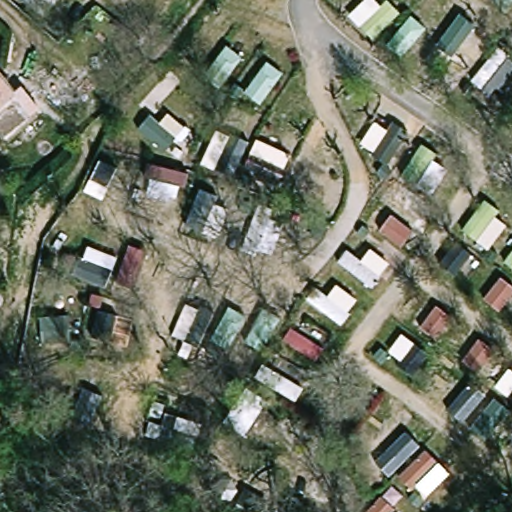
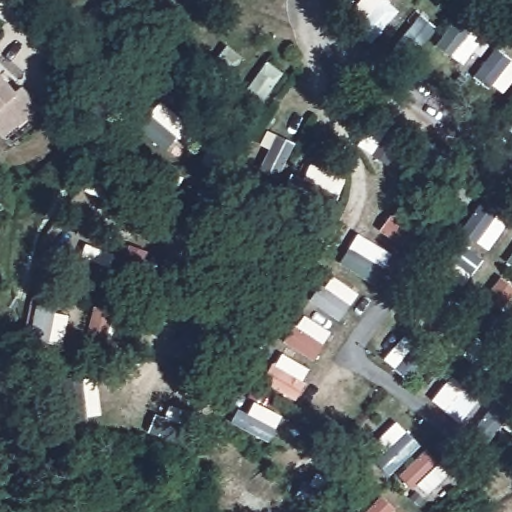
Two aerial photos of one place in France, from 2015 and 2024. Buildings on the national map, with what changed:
unchanged [(23,92),(18,96),(32,114),(3,136),(0,132),(0,61),(23,92)]

